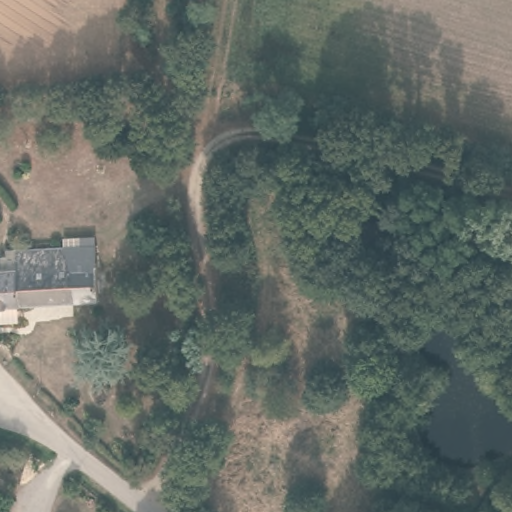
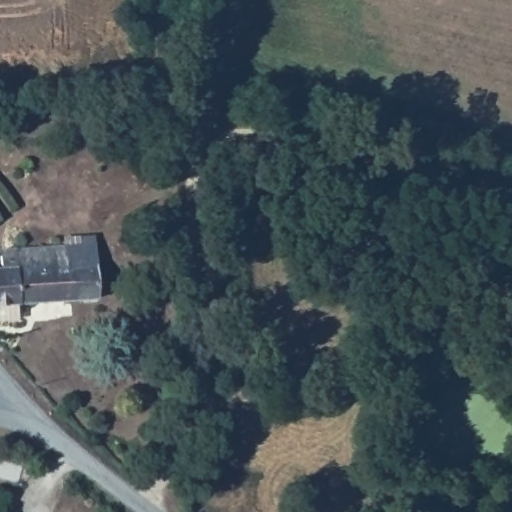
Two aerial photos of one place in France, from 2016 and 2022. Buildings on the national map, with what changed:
unchanged [(16,266),(15,247),(65,244),(74,262),(97,261),(99,295),(75,297),(17,299),(16,266)]
unchanged [(0,266),(16,266),(17,299),(13,300),(14,318),(0,319),(0,266)]

